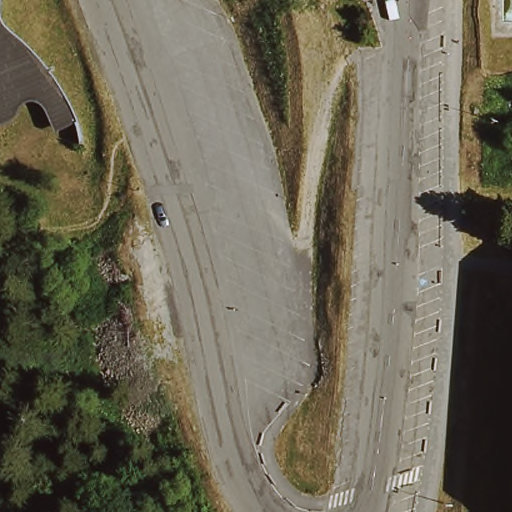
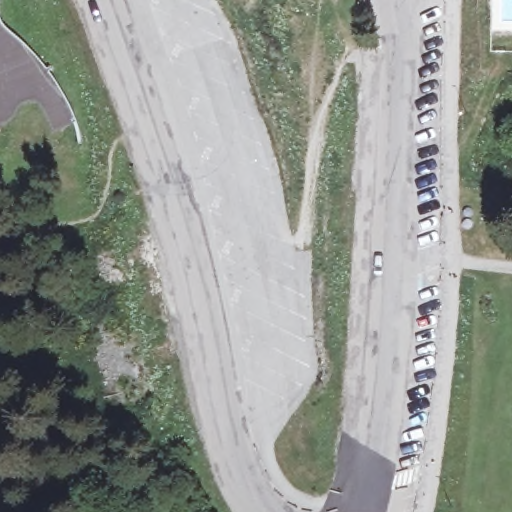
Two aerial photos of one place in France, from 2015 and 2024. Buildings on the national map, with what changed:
unchanged [(5,12),(12,23),(42,52),(54,66),(67,85),(79,111),(58,125),(42,107),(28,107),(18,117),(0,124),(0,0),(1,0),(1,2),(5,12)]

